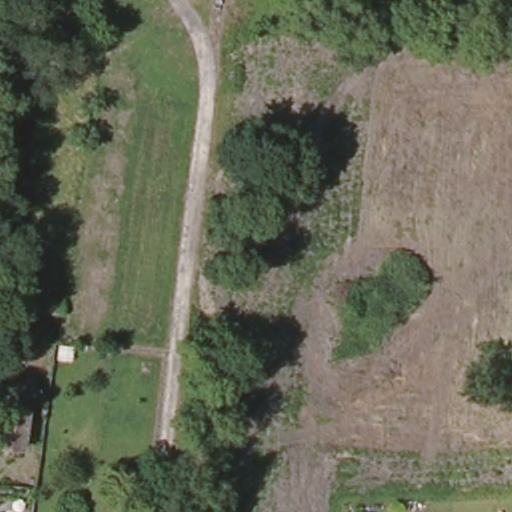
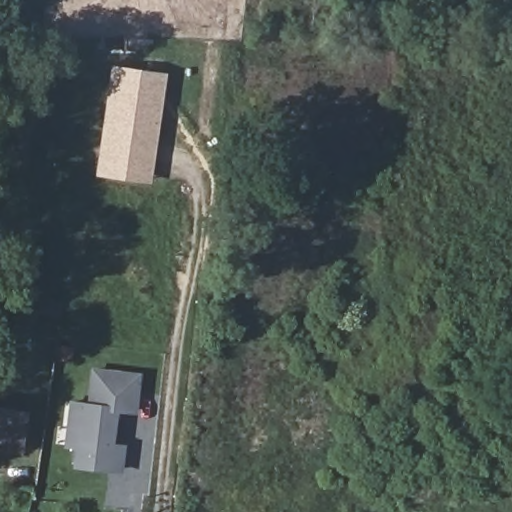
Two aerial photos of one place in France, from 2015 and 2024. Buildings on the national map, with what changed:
new [(114,76),(146,80),(135,169),(100,164),(114,76)]
new [(146,80),(163,83),(150,171),(135,169),(146,80)]
unchanged [(71,314),(22,306),(24,295),(74,302),(71,314)]
new [(75,399),(91,401),(96,366),(109,368),(95,472),(73,469),(75,449),(68,448),(75,399)]
new [(109,368),(141,371),(136,414),(117,411),(114,441),(125,443),(121,473),(95,469),(109,368)]
unchanged [(18,449),(0,447),(0,411),(23,414),(18,449)]

